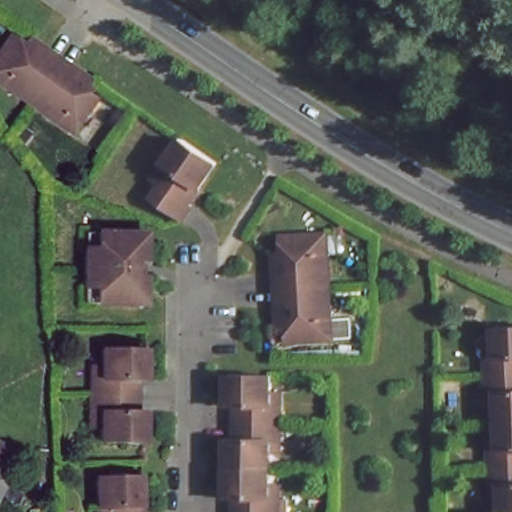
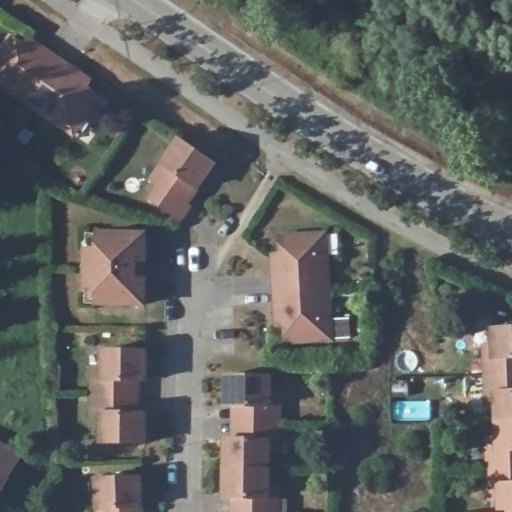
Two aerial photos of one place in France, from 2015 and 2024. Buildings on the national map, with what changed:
unchanged [(31,56),(36,49),(44,54),(86,81),(93,86),(88,93),(100,102),(103,103),(75,138),(62,129),(0,89),(0,74),(18,47),(31,56)]
unchanged [(192,203),(182,216),(152,195),(162,183),(153,177),(165,163),(183,140),(218,164),(198,187),(188,200),(192,203)]
unchanged [(90,243),(89,227),(98,227),(140,224),(140,250),(141,267),(141,292),(100,295),(90,296),(90,281),(90,243)]
unchanged [(273,257),(270,243),(316,234),(328,282),(272,292),(267,269),(265,258),(273,257)]
unchanged [(291,340),(289,330),(288,324),(280,326),(278,317),(272,292),(328,282),(335,317),(336,330),(291,340)]
unchanged [(471,512),(478,511),(498,511),(498,496),(488,496),(487,478),(485,447),(484,433),(493,433),(493,425),(492,402),(483,402),(482,388),(482,357),(483,342),(493,342),(494,327),(512,327),(512,512),(471,512)]
unchanged [(89,410),(90,377),(90,361),(100,361),(100,354),(100,347),(141,346),(141,351),(141,375),(136,376),(135,391),(135,409),(139,409),(139,436),(140,440),(105,440),(99,440),(99,424),(88,425),(89,410)]
unchanged [(266,448),(263,448),(245,452),(236,454),(226,456),(224,457),(223,440),(223,432),(228,432),(228,415),(228,399),(226,399),(223,399),(223,397),(223,378),(223,377),(223,366),(237,367),(256,367),(266,367),(266,371),(266,376),(266,382),(276,383),(276,399),(276,404),(276,423),(276,431),(276,445),(266,445),(266,448)]
unchanged [(20,457),(11,470),(0,490),(0,445),(12,452),(20,457)]
unchanged [(230,511),(230,494),(225,494),(224,457),(226,456),(236,454),(245,452),(263,448),(266,448),(266,476),(276,476),(276,492),(277,512),(230,512),(230,511)]
unchanged [(94,501),(93,469),(140,468),(141,499),(142,512),(94,512),(94,501)]

